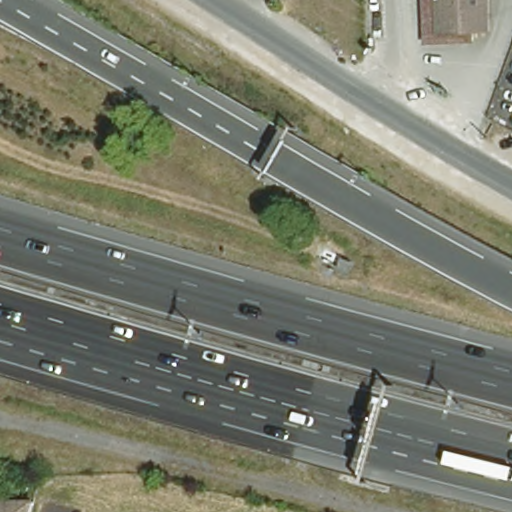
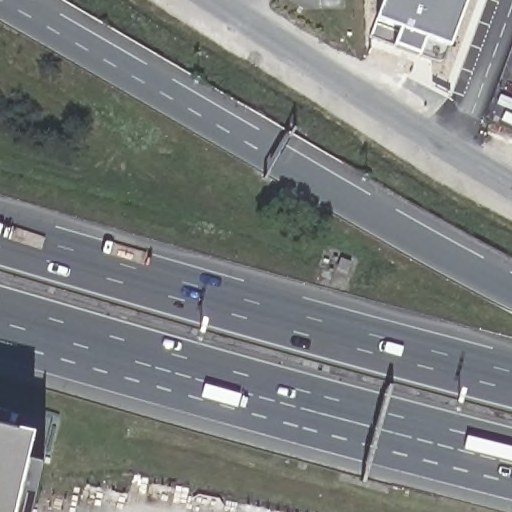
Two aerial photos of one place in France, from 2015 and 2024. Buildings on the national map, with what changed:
new [(384,0),(465,0),(441,63),(370,37),(384,0)]
demolished [(479,34),(429,36),(428,0),(477,0),(479,34)]
new [(27,459),(42,463),(35,496),(31,512),(0,512),(0,425),(34,433),(27,459)]

